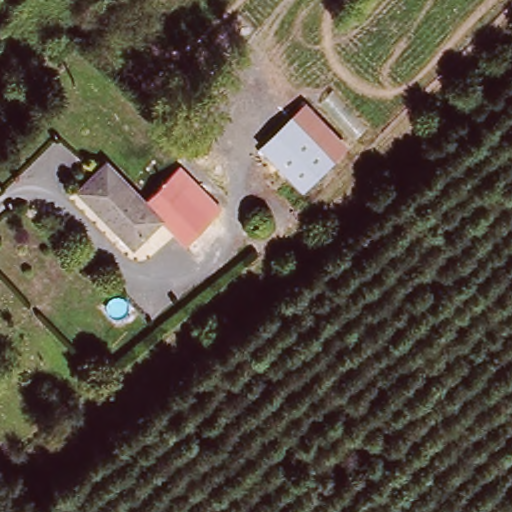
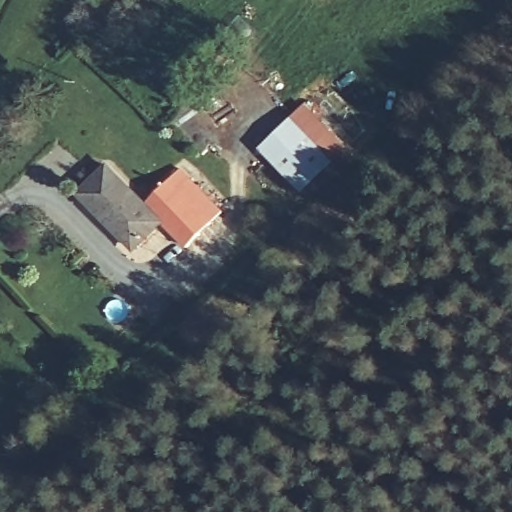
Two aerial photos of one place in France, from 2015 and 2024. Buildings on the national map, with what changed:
unchanged [(259,147),(305,105),(347,149),(302,193),(259,147)]
unchanged [(141,249),(85,195),(111,167),(146,202),(172,176),(205,208),(179,235),(166,222),(141,249)]

